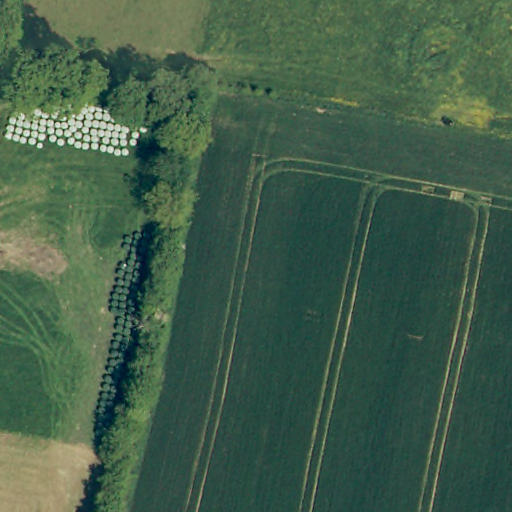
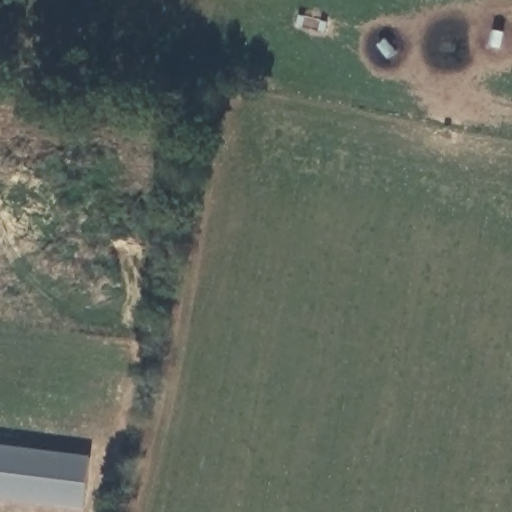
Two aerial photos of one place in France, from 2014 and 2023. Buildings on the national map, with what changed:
new [(83,508),(0,498),(0,444),(88,455),(83,508)]

